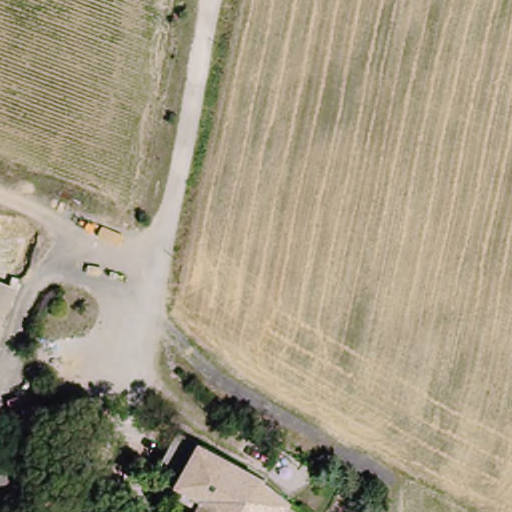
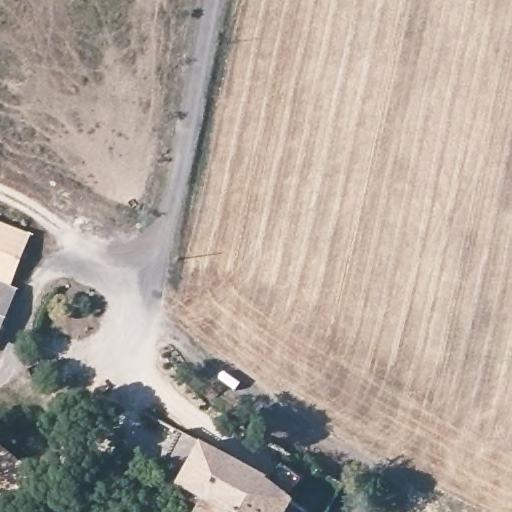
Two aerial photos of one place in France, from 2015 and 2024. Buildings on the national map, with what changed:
new [(8,287),(0,284),(0,223),(28,234),(8,287)]
unchanged [(0,309),(0,284),(8,287),(0,309)]
unchanged [(156,453),(133,439),(149,410),(172,423),(156,453)]
unchanged [(288,512),(195,512),(203,496),(178,481),(205,436),(296,496),(288,512)]
unchanged [(34,512),(0,512),(0,442),(55,482),(34,512)]

